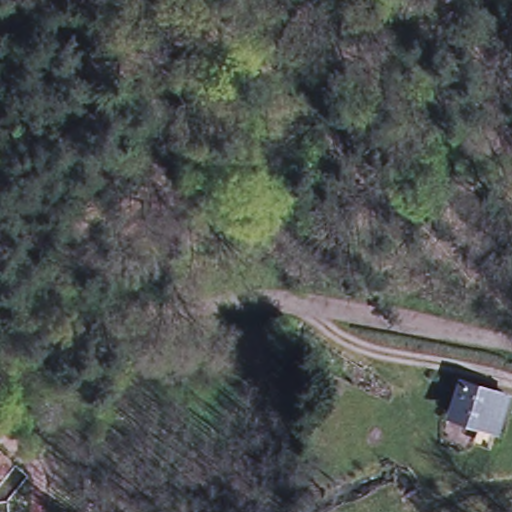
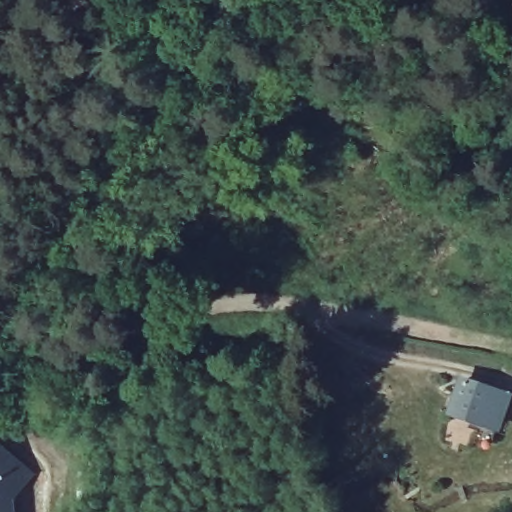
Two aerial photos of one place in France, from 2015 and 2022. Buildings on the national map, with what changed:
unchanged [(502,394),(492,425),(451,412),(460,382),(502,394)]
new [(8,503),(9,512),(0,512),(0,453),(30,478),(8,503)]

